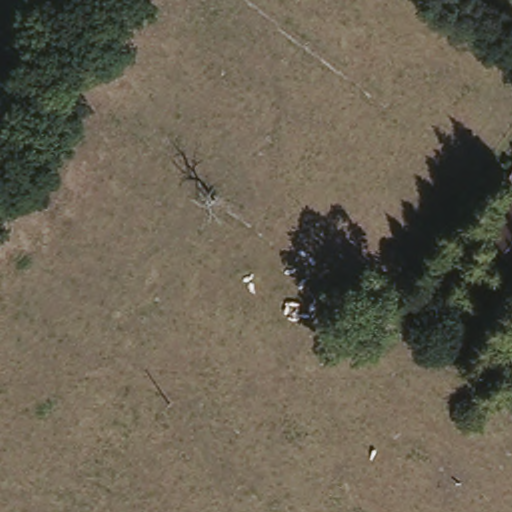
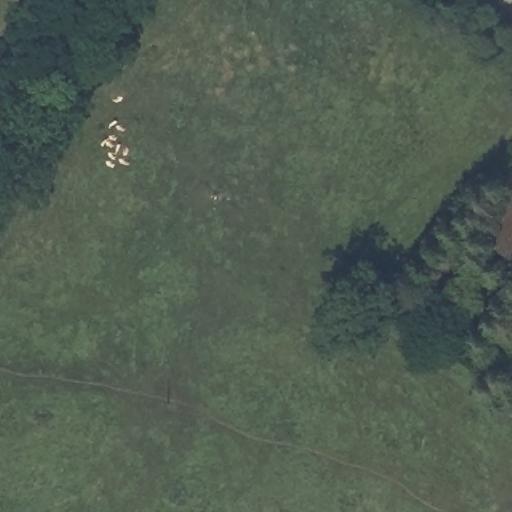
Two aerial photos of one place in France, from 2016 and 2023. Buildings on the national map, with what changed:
unchanged [(505,214),(487,203),(512,169),(512,218),(505,214)]
unchanged [(487,241),(505,214),(512,218),(512,255),(487,241)]

